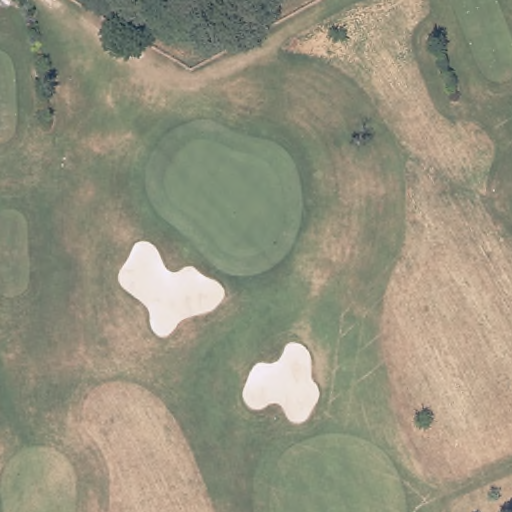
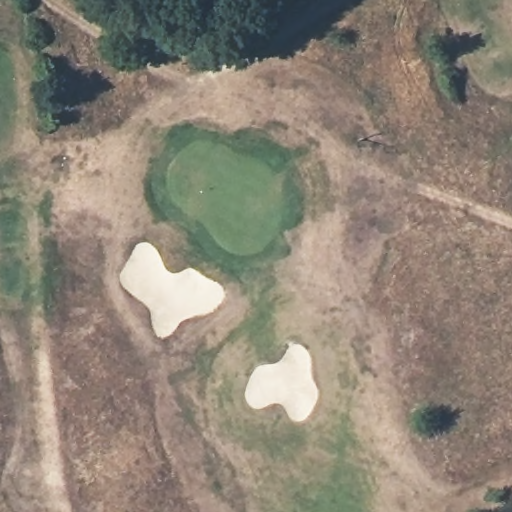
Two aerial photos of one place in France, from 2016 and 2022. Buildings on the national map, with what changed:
[]

